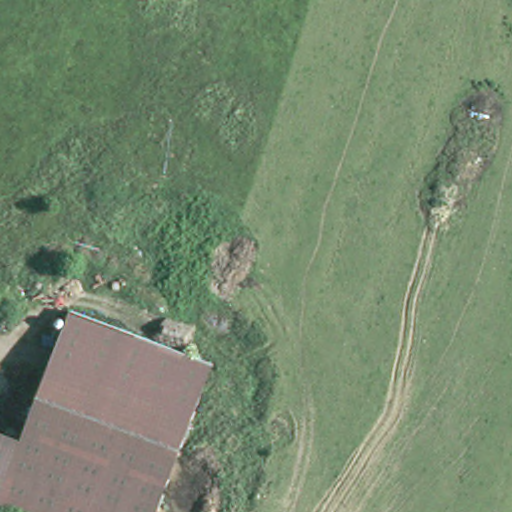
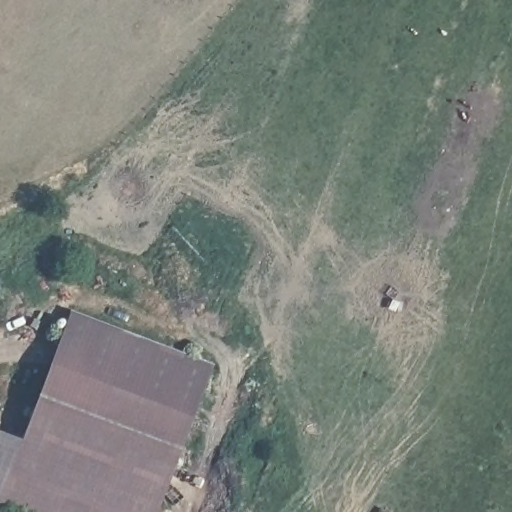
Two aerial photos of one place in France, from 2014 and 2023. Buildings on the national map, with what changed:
unchanged [(210,361),(153,512),(21,512),(0,504),(0,487),(17,439),(69,307),(210,361)]
unchanged [(0,487),(0,432),(17,439),(0,487)]

